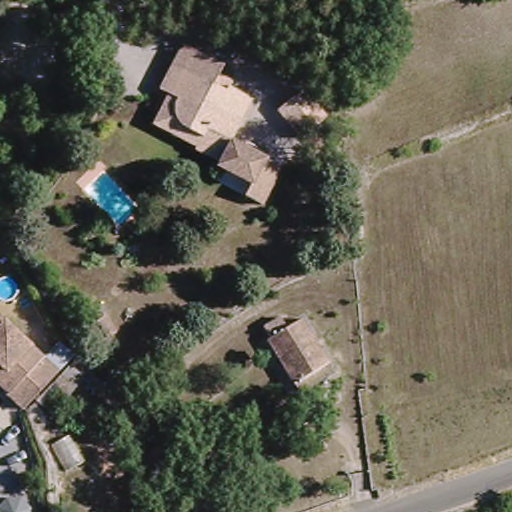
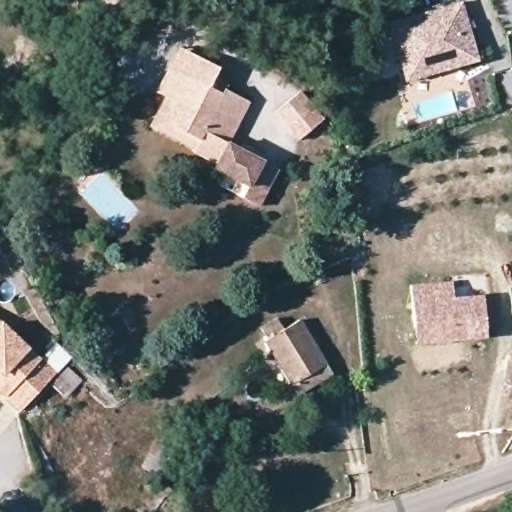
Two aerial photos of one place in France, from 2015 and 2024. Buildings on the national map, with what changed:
new [(479,61),(405,81),(390,22),(462,4),(479,61)]
unchanged [(86,39),(65,37),(65,16),(85,15),(86,39)]
unchanged [(224,69),(215,85),(249,100),(225,146),(220,155),(210,151),(144,122),(164,96),(153,92),(176,45),(224,69)]
unchanged [(327,112),(306,153),(261,129),(280,90),(327,112)]
unchanged [(220,155),(225,146),(277,168),(258,213),(236,203),(242,190),(201,170),(210,151),(220,155)]
new [(453,282),(455,298),(484,295),(488,338),(415,345),(411,285),(453,282)]
unchanged [(294,383),(269,340),(306,317),(331,363),(294,383)]
unchanged [(0,325),(51,376),(18,416),(0,397),(0,325)]
unchanged [(91,381),(68,402),(48,384),(68,365),(91,381)]
unchanged [(162,473),(148,462),(160,447),(174,458),(162,473)]
unchanged [(6,502),(26,512),(2,512),(6,502)]

